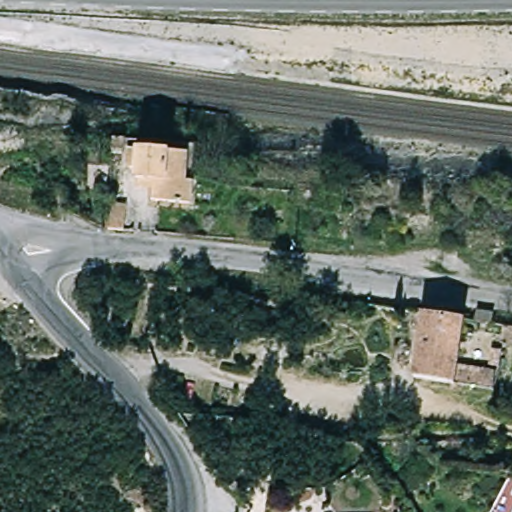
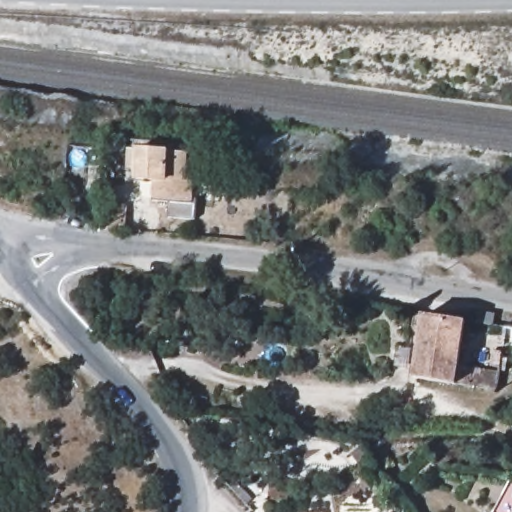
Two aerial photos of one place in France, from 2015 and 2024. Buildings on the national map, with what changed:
unchanged [(189,151),(188,181),(195,181),(193,207),(155,203),(156,179),(144,176),(144,166),(134,165),(137,145),(189,151)]
unchanged [(139,223),(128,221),(130,197),(146,200),(143,223),(139,223)]
unchanged [(477,322),(472,322),(472,321),(474,310),(491,313),(489,325),(477,322)]
unchanged [(493,390),(456,385),(415,377),(421,315),(463,320),(458,365),(496,371),(493,390)]

